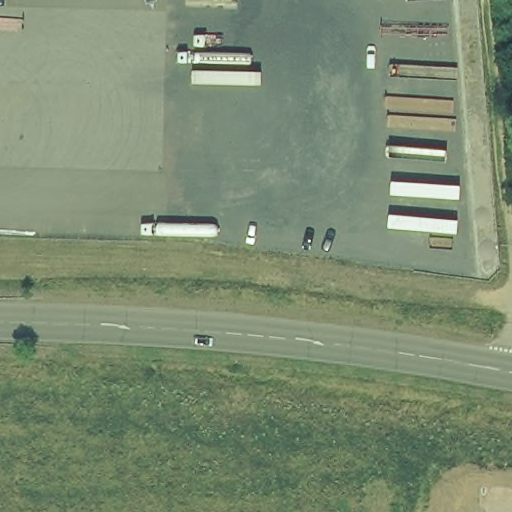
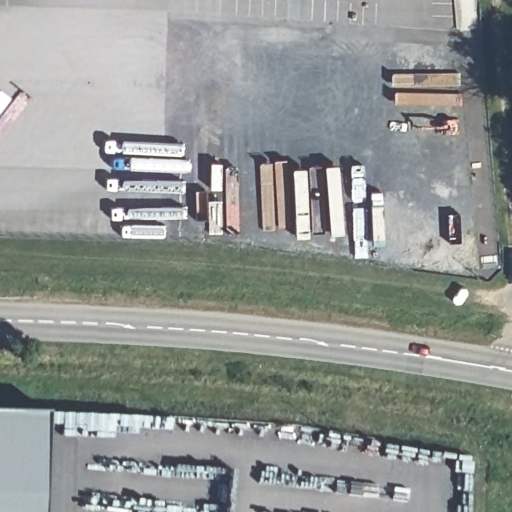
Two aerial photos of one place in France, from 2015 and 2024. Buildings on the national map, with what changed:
new [(57,417),(52,512),(0,512),(0,414),(57,417)]

